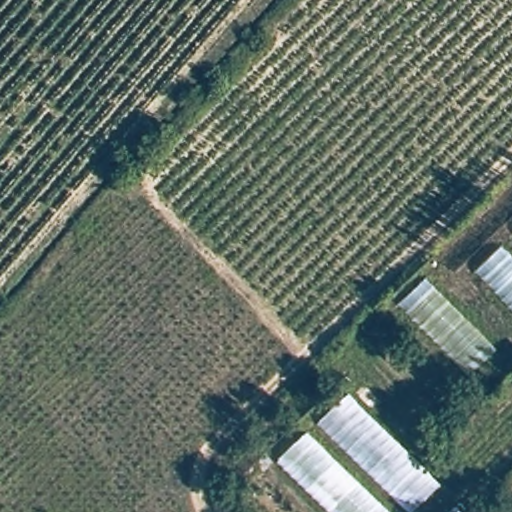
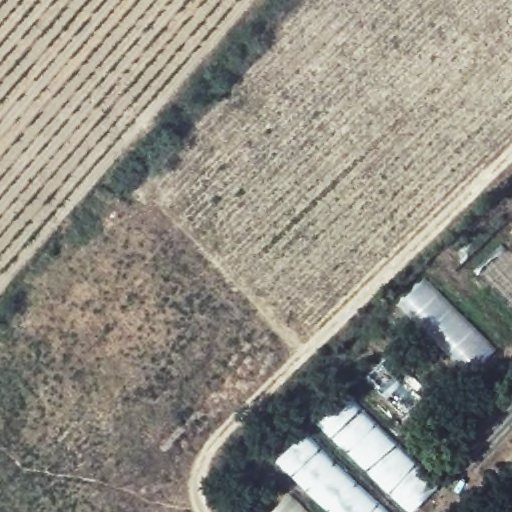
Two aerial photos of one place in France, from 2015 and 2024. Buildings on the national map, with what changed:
unchanged [(505,245),(512,253),(512,307),(478,272),(505,245)]
unchanged [(470,375),(400,303),(428,278),(496,350),(470,375)]
unchanged [(416,512),(413,512),(322,422),(351,393),(440,486),(416,512)]
unchanged [(292,492),(279,462),(308,435),(386,512),(275,512),(292,492)]

